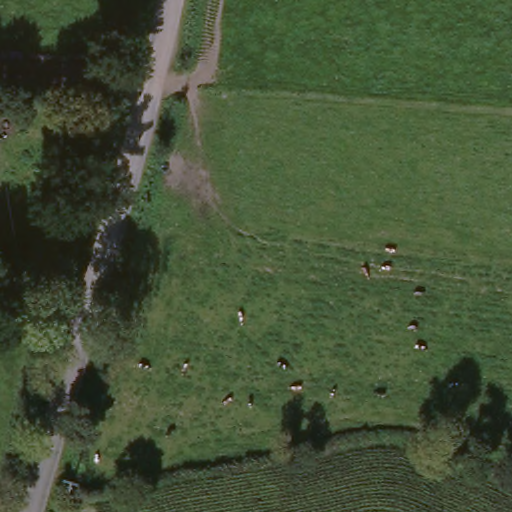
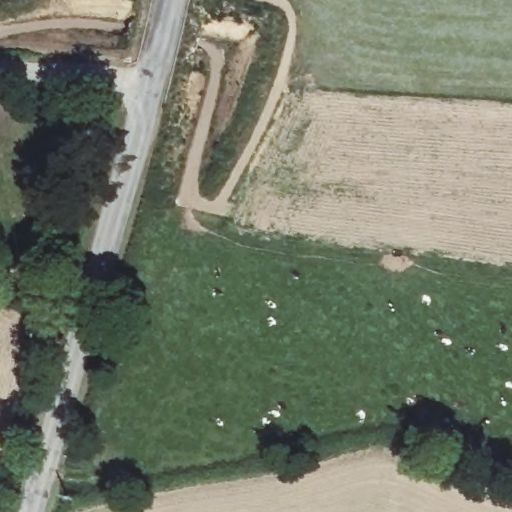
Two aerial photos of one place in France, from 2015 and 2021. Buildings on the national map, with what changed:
unchanged [(104,356),(115,358),(111,370),(101,367),(104,356)]

